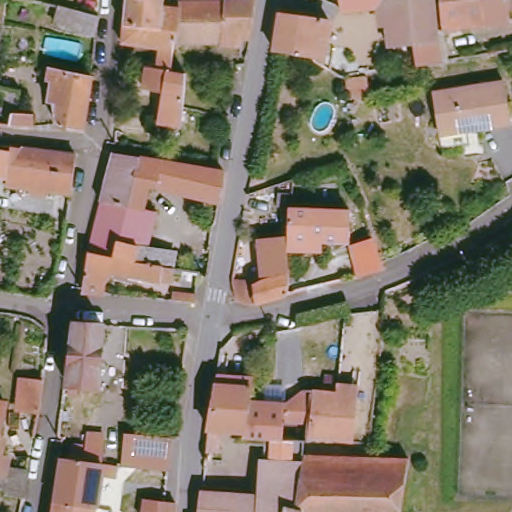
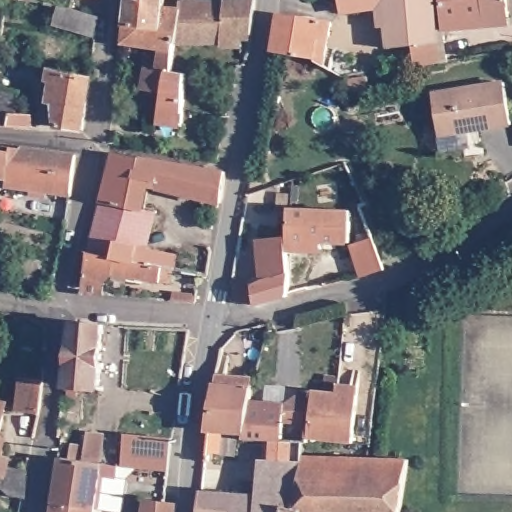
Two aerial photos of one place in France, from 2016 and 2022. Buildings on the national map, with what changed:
unchanged [(177,30),(129,25),(131,0),(164,0),(164,11),(179,11),(177,30)]
unchanged [(393,44),(388,3),(361,5),(340,7),(339,0),(436,0),(440,38),(442,57),(414,62),(413,42),(393,44)]
unchanged [(512,14),(485,17),(485,20),(443,25),(440,0),(510,0),(512,14)]
unchanged [(246,51),(245,47),(224,45),(223,42),(177,36),(177,30),(179,11),(179,6),(255,2),(256,1),(251,52),(246,51)]
unchanged [(101,14),(99,32),(58,25),(61,6),(101,14)]
unchanged [(304,54),(297,52),(265,47),(272,11),(324,20),(320,45),(329,46),(329,57),(337,61),(333,72),(304,54)]
unchanged [(173,72),(151,69),(152,55),(149,55),(149,47),(126,45),(129,25),(177,30),(177,36),(173,72)]
unchanged [(84,125),(62,123),(60,102),(54,102),(56,77),(53,76),(55,67),(93,74),(84,125)]
unchanged [(157,98),(152,97),(138,95),(141,68),(151,69),(173,72),(186,73),(182,108),(181,126),(154,123),(156,102),(157,98)]
unchanged [(357,73),(360,93),(341,96),(338,76),(357,73)]
unchanged [(438,127),(434,90),(504,81),(508,124),(477,127),(469,129),(471,145),(440,149),(438,127)]
unchanged [(2,85),(23,89),(20,110),(35,112),(36,123),(0,119),(0,97),(2,85)]
unchanged [(76,152),(72,188),(9,181),(10,169),(0,169),(0,143),(76,152)]
unchanged [(140,210),(150,212),(144,237),(92,226),(110,151),(137,156),(133,176),(139,177),(137,185),(144,186),(140,210)]
unchanged [(218,203),(215,202),(144,186),(137,185),(139,177),(133,176),(137,156),(221,171),(218,203)]
unchanged [(244,196),(271,198),(268,228),(239,226),(244,196)]
unchanged [(292,207),(351,211),(349,245),(338,244),(321,243),(320,249),(290,248),(292,207)]
unchanged [(169,272),(167,277),(157,276),(155,279),(110,272),(107,291),(80,289),(88,248),(92,226),(144,237),(142,244),(161,248),(159,263),(180,267),(179,273),(169,272)]
unchanged [(287,287),(287,290),(258,298),(254,281),(264,277),(258,255),(273,250),(276,258),(288,255),(287,287)]
unchanged [(357,255),(380,250),(385,261),(386,266),(360,272),(357,255)]
unchanged [(74,326),(104,328),(100,385),(70,384),(74,326)]
unchanged [(217,382),(222,358),(231,359),(228,383),(252,384),(250,400),(245,437),(236,436),(236,429),(221,428),(218,451),(207,450),(209,426),(217,382)]
unchanged [(40,412),(14,408),(18,378),(44,381),(40,412)]
unchanged [(339,390),(340,383),(359,385),(358,393),(352,443),(309,438),(315,388),(339,390)]
unchanged [(286,403),(283,440),(245,437),(250,400),(286,403)]
unchanged [(168,466),(121,461),(122,458),(126,431),(149,434),(171,435),(168,466)]
unchanged [(4,441),(1,462),(10,463),(10,467),(31,468),(27,501),(10,496),(0,483),(0,440),(4,441)]
unchanged [(299,509),(305,465),(306,457),(367,460),(410,461),(402,512),(285,512),(285,508),(299,509)]
unchanged [(53,506),(58,460),(84,462),(98,467),(109,470),(115,472),(113,483),(97,481),(93,511),(53,506)]
unchanged [(285,508),(285,512),(200,512),(203,492),(262,498),(267,462),(305,465),(299,509),(285,508)]
unchanged [(144,512),(147,497),(176,499),(176,512),(144,512)]
unchanged [(93,512),(52,512),(53,506),(93,511),(93,512)]

